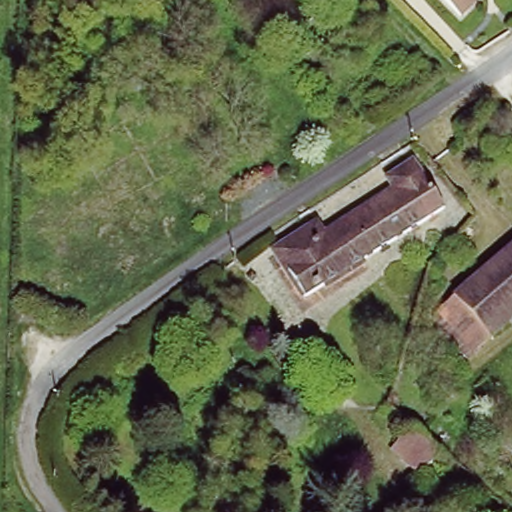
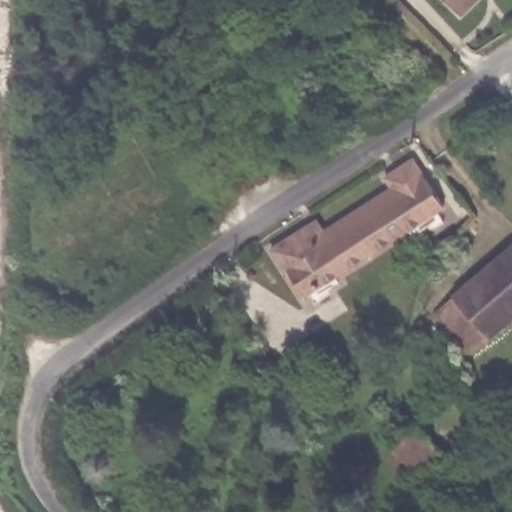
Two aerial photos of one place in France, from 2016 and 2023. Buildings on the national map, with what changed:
unchanged [(450,0),(464,0),(458,7),(450,0)]
unchanged [(327,41),(306,60),(291,43),(312,25),(327,41)]
unchanged [(301,302),(269,253),(316,222),(324,234),(393,189),(385,177),(416,157),(448,206),(301,302)]
unchanged [(465,358),(429,317),(512,243),(512,316),(465,358)]
unchanged [(423,478),(392,451),(411,428),(442,454),(423,478)]
unchanged [(482,503),(470,493),(480,482),(492,492),(482,503)]

